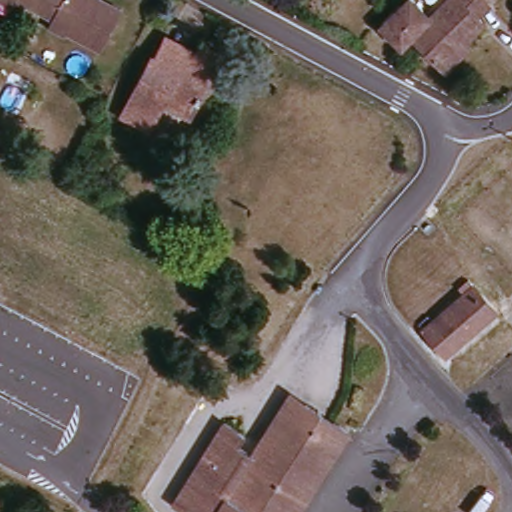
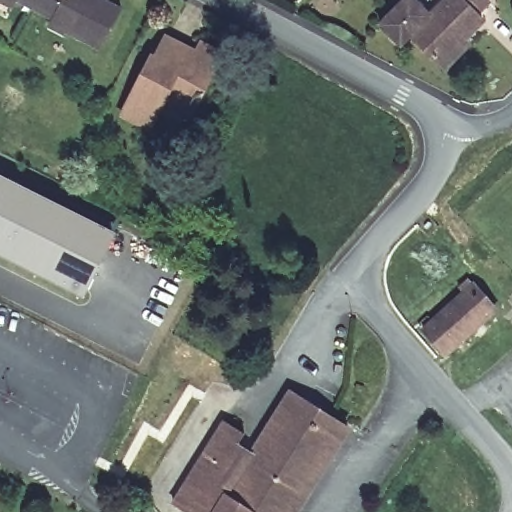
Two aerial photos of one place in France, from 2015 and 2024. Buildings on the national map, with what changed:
unchanged [(4,0),(15,0),(13,5),(4,0)]
unchanged [(15,0),(38,0),(34,10),(15,0)]
unchanged [(100,50),(49,23),(51,19),(34,10),(38,0),(102,0),(120,10),(100,50)]
unchanged [(443,61),(415,31),(402,40),(382,19),(402,0),(420,0),(425,5),(431,13),(435,10),(444,0),(492,0),(484,8),(485,17),(470,29),(471,33),(477,39),(449,66),(443,61)]
unchanged [(175,101),(161,129),(128,113),(159,51),(164,54),(173,34),(205,50),(209,41),(225,49),(215,67),(220,69),(201,105),(197,113),(175,101)]
new [(116,232),(85,289),(71,283),(69,289),(0,255),(0,173),(116,232)]
unchanged [(431,328),(482,286),(490,295),(506,312),(495,320),(451,354),(431,328)]
unchanged [(315,493),(220,443),(232,420),(251,431),(246,442),(262,451),(299,388),(356,421),(315,493)]
unchanged [(305,512),(193,512),(183,507),(220,443),(315,493),(305,512)]
unchanged [(5,493),(0,502),(0,489),(5,493)]

